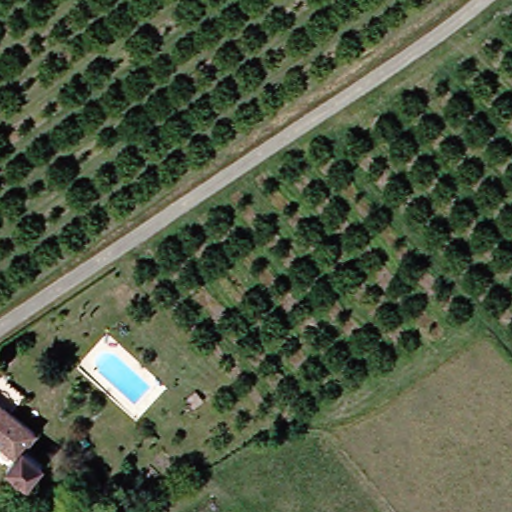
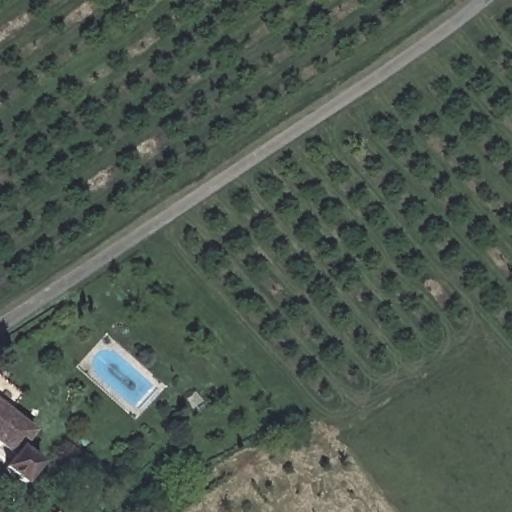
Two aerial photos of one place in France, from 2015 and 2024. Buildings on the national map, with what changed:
unchanged [(17,449),(37,465),(22,485),(2,468),(11,456),(0,448),(0,409),(30,433),(17,449)]

